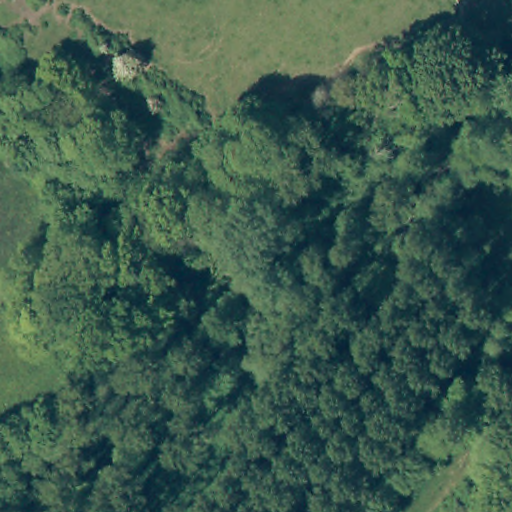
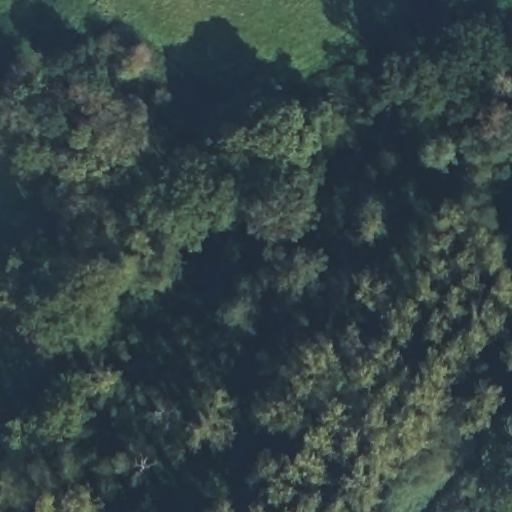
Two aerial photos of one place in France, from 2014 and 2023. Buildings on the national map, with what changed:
[]

